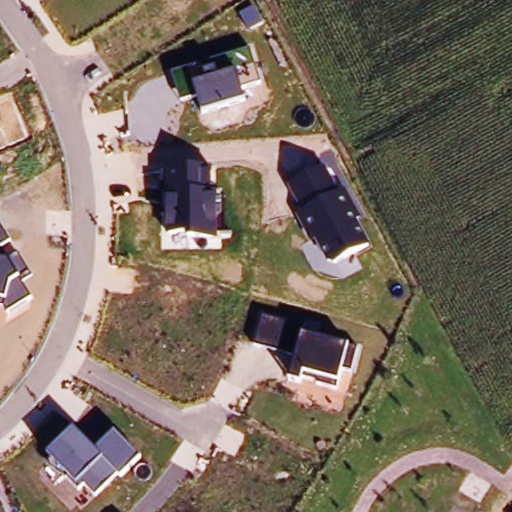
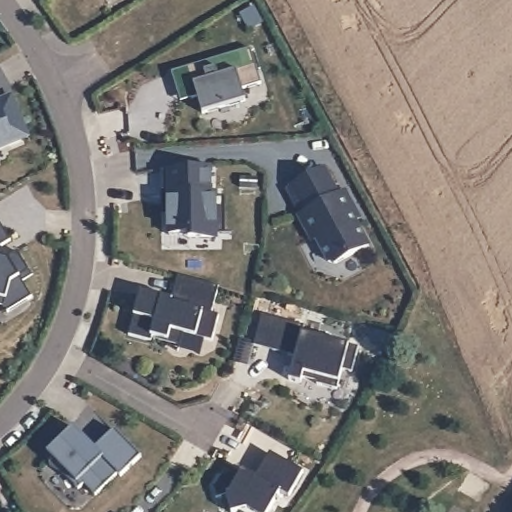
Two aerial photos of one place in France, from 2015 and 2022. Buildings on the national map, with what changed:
unchanged [(250,49),(259,85),(244,90),(247,102),(202,112),(199,98),(181,102),(174,70),(250,49)]
unchanged [(32,138),(0,151),(0,99),(14,93),(32,138)]
unchanged [(165,214),(164,214),(165,167),(211,168),(211,192),(225,192),(226,231),(219,231),(219,240),(187,238),(187,231),(165,235),(165,214)]
unchanged [(337,193),(346,189),(362,218),(357,221),(369,243),(337,263),(326,261),(314,237),(310,240),(296,212),(300,211),(289,184),(324,169),(337,193)]
unchanged [(1,246),(10,259),(20,253),(34,276),(24,282),(32,299),(7,313),(0,311),(0,223),(11,241),(1,246)]
new [(141,290),(162,296),(165,301),(171,302),(177,275),(219,286),(212,312),(219,314),(212,340),(171,329),(168,340),(152,336),(151,341),(129,335),(141,290)]
unchanged [(305,325),(304,331),(359,347),(352,373),(342,369),(337,391),(317,385),(317,382),(291,378),(296,356),(255,344),(262,313),(305,325)]
unchanged [(137,455),(97,496),(84,484),(78,490),(46,457),(76,427),(97,450),(115,431),(137,455)]
new [(246,470),(257,477),(271,453),(305,473),(290,498),(282,493),(271,512),(255,512),(252,510),(245,512),(232,512),(227,496),(217,499),(214,487),(219,478),(246,470)]

